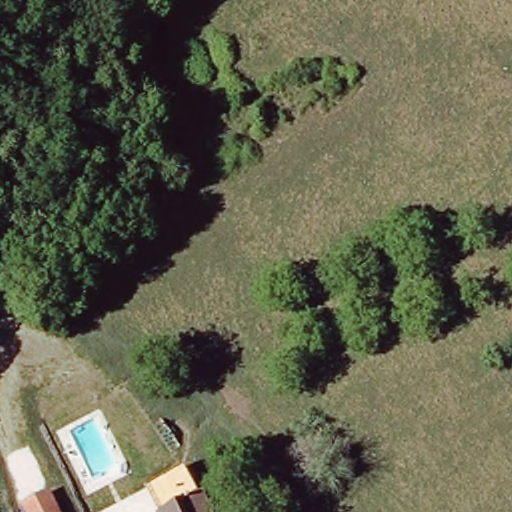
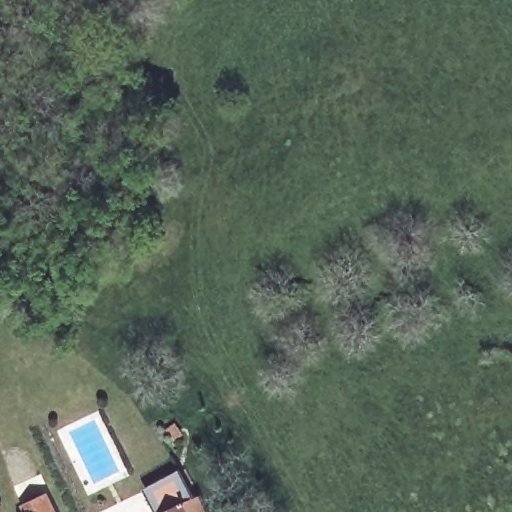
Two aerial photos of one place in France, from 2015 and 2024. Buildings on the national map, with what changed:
unchanged [(52,512),(28,512),(25,503),(45,495),(52,512)]
unchanged [(205,495),(213,512),(162,512),(205,495)]

